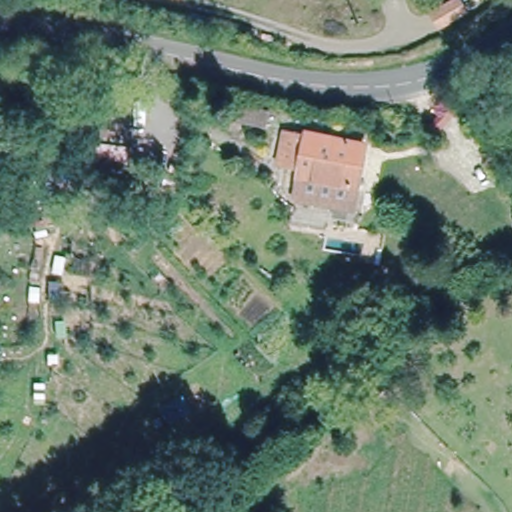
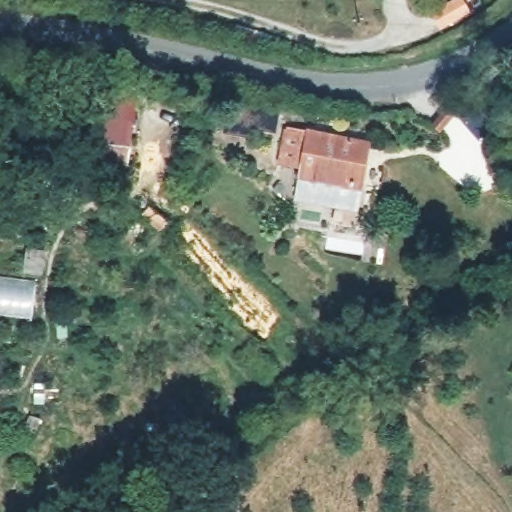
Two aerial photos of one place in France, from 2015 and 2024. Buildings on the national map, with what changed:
unchanged [(451,0),(467,0),(472,11),(441,27),(433,9),(451,0)]
unchanged [(121,102),(117,118),(128,120),(126,142),(98,135),(103,99),(121,102)]
unchanged [(308,135),(309,129),(370,140),(362,181),(304,171),(280,166),(287,130),(308,135)]
unchanged [(357,207),(298,200),(304,171),(362,181),(357,207)]
new [(23,273),(26,247),(45,249),(42,275),(23,273)]
new [(36,280),(30,320),(0,316),(0,275),(36,280)]

